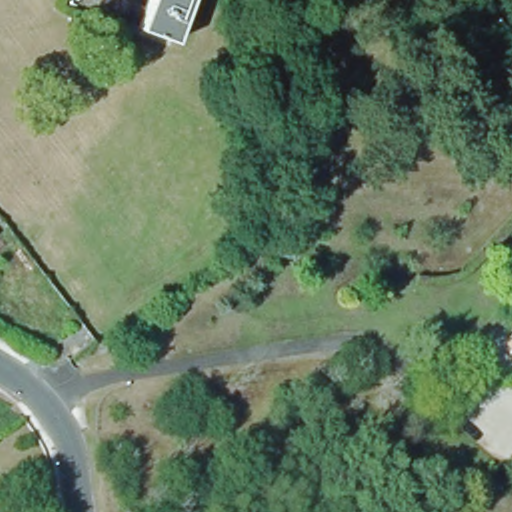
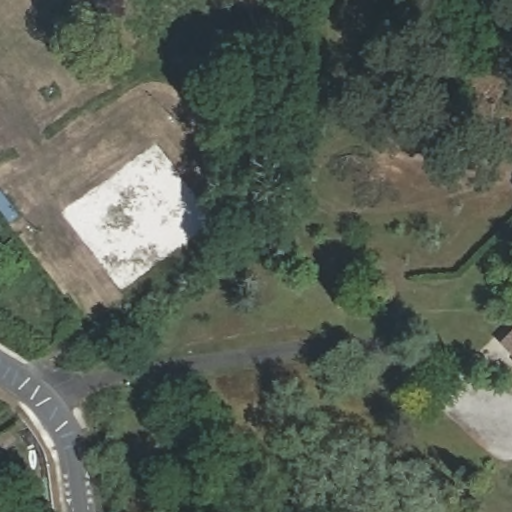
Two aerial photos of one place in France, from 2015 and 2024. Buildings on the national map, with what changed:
demolished [(171,46),(155,40),(141,35),(135,33),(147,0),(188,0),(171,46)]

